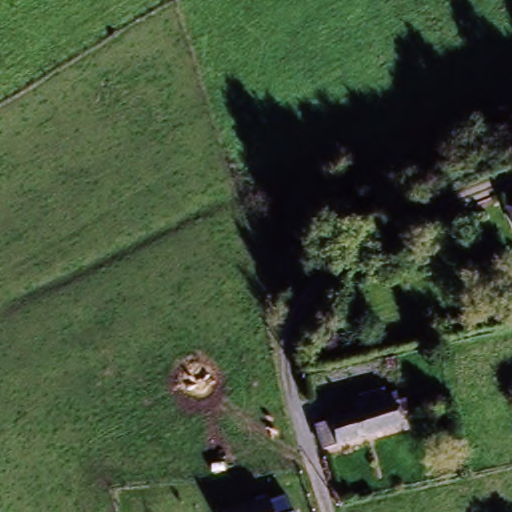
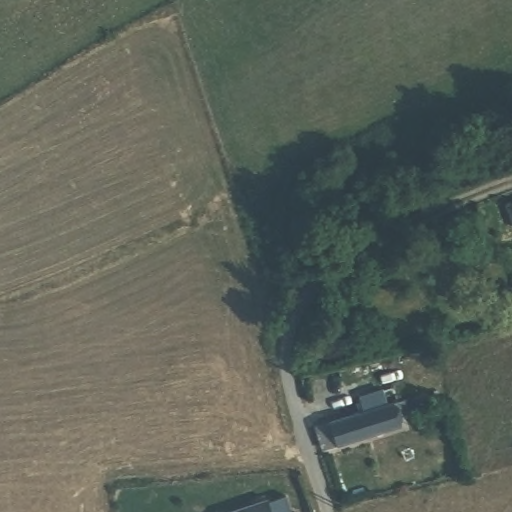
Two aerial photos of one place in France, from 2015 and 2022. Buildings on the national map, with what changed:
unchanged [(512,206),(512,213),(510,207),(512,206)]
unchanged [(316,423),(365,410),(361,396),(383,389),(387,405),(391,404),(394,412),(406,409),(410,424),(398,426),(322,447),(316,423)]
unchanged [(269,512),(236,512),(265,502),(269,512)]

